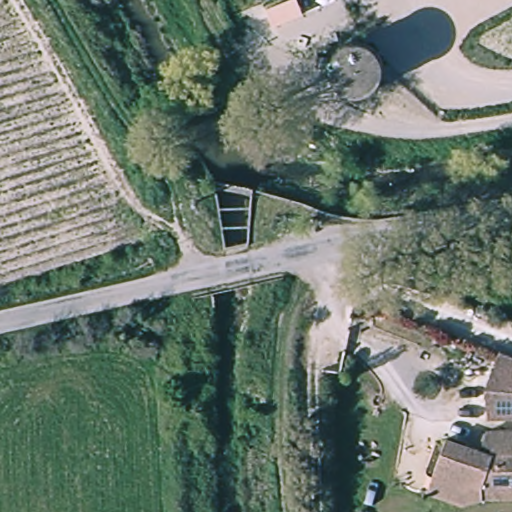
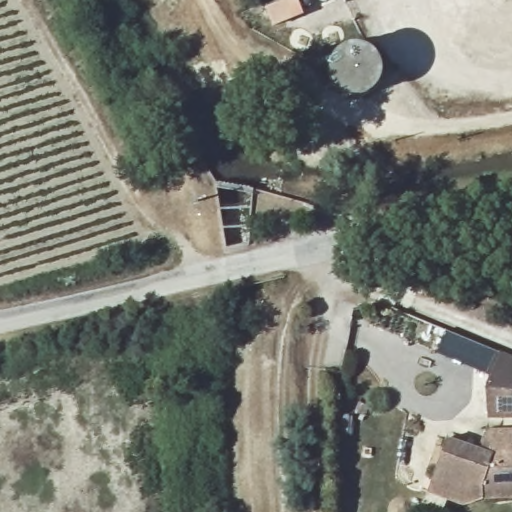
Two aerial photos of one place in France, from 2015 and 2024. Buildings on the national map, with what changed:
unchanged [(483,391),(498,351),(512,356),(512,420),(488,421),(483,391)]
unchanged [(463,511),(430,498),(450,445),(480,455),(488,432),(512,431),(512,494),(487,495),(463,511)]

